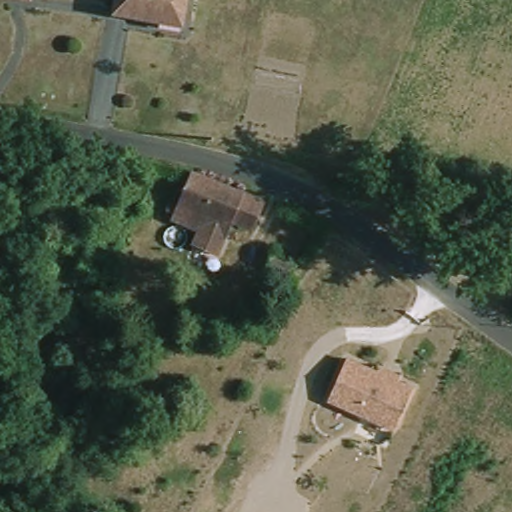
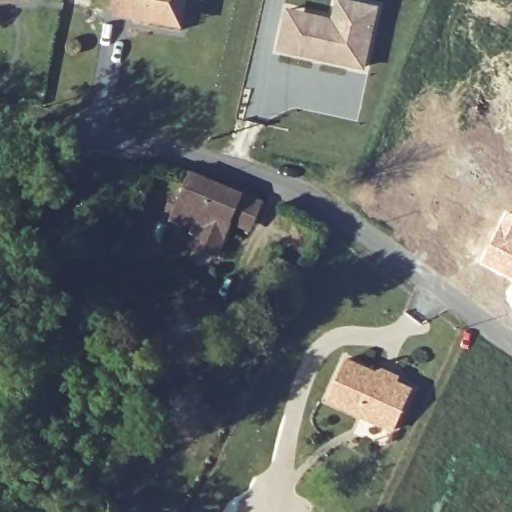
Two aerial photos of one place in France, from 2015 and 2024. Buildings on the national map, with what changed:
unchanged [(116,11),(117,0),(163,0),(160,14),(159,20),(116,11)]
unchanged [(160,14),(163,0),(192,0),(189,20),(160,14)]
new [(286,25),(289,11),(320,17),(335,21),(339,0),(344,0),(378,8),(365,68),(324,59),(312,56),(281,50),(286,25)]
unchanged [(172,220),(192,172),(259,202),(248,226),(232,219),(227,231),(215,256),(192,245),(198,231),(172,220)]
new [(512,214),(512,277),(480,261),(505,210),(512,214)]
unchanged [(274,256),(298,268),(291,281),(269,269),(274,256)]
unchanged [(109,275),(119,280),(111,298),(101,292),(109,275)]
unchanged [(347,357),(377,371),(384,367),(388,376),(413,387),(395,428),(328,398),(347,357)]

